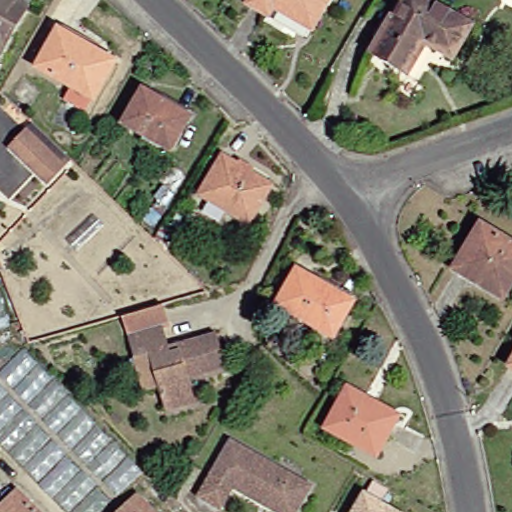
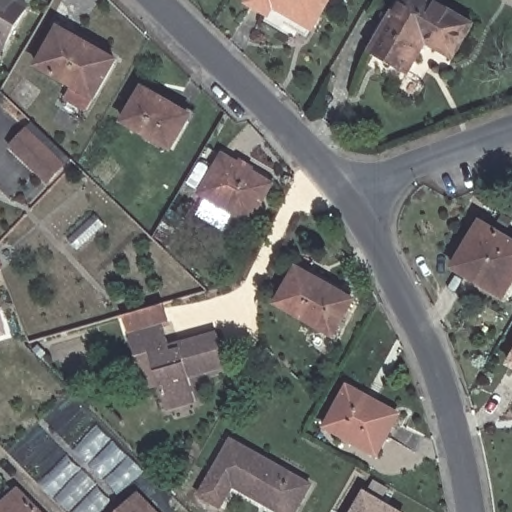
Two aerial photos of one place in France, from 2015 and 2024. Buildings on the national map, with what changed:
unchanged [(0,28),(0,0),(3,0),(13,6),(0,28)]
unchanged [(262,2),(257,10),(240,0),(316,0),(301,24),(262,2)]
unchanged [(423,0),(463,24),(442,59),(415,43),(397,74),(358,51),(389,0),(423,0)]
unchanged [(54,94),(61,81),(25,61),(48,22),(105,55),(83,94),(75,108),(54,94)]
unchanged [(25,108),(11,95),(25,79),(39,92),(25,108)]
unchanged [(180,115),(160,150),(112,122),(131,88),(180,115)]
unchanged [(51,165),(36,180),(1,147),(16,131),(51,165)]
unchanged [(190,193),(213,154),(261,183),(239,222),(190,193)]
unchanged [(470,223),(512,249),(512,263),(492,297),(443,268),(470,223)]
demolished [(0,269),(0,252),(7,263),(0,269)]
unchanged [(0,270),(0,265),(1,269),(0,270)]
unchanged [(320,288),(320,290),(341,303),(322,335),(266,304),(286,269),(299,276),(320,288)]
demolished [(0,322),(0,279),(13,319),(0,322)]
unchanged [(125,354),(119,334),(114,315),(150,304),(156,324),(151,325),(157,347),(206,333),(216,366),(176,377),(184,402),(155,411),(147,386),(134,390),(125,354)]
new [(0,334),(0,317),(5,333),(0,334)]
unchanged [(500,364),(512,343),(512,372),(500,364)]
demolished [(0,379),(27,347),(85,402),(56,434),(69,447),(37,478),(0,439),(0,379)]
unchanged [(311,427),(332,388),(351,399),(382,415),(378,423),(361,454),(311,427)]
unchanged [(221,481),(209,502),(189,491),(220,436),(300,481),(283,509),(282,512),(277,512),(252,498),(221,481)]
unchanged [(127,489),(149,512),(104,512),(127,489)]
unchanged [(0,497),(7,491),(28,512),(0,512),(0,497)]
unchanged [(355,494),(385,512),(344,512),(355,494)]

